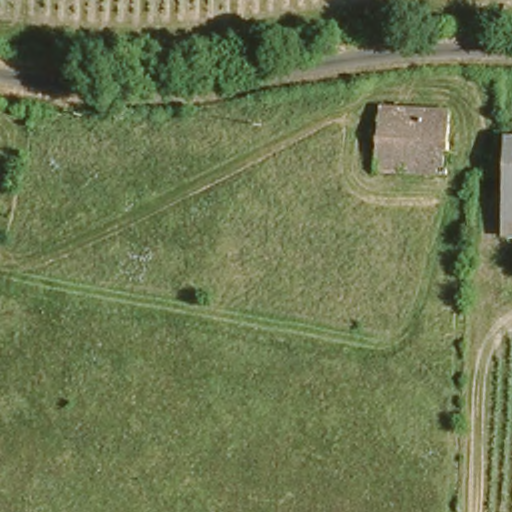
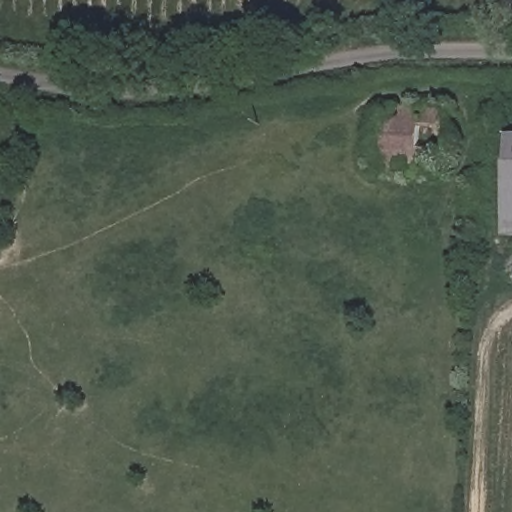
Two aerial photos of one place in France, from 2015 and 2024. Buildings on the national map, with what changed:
unchanged [(374,102),(446,104),(444,160),(373,159),(374,102)]
unchanged [(503,229),(505,187),(508,125),(512,125),(512,229),(503,229)]

